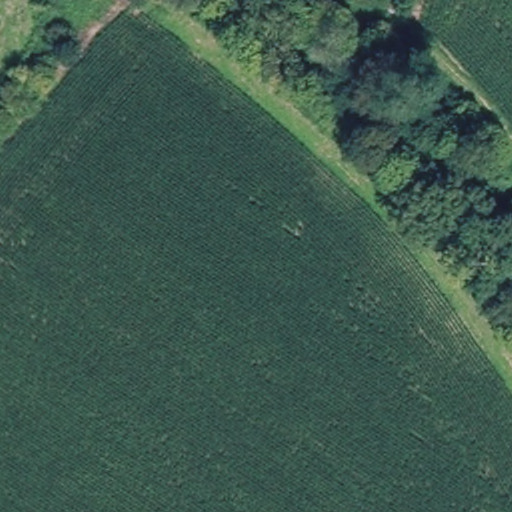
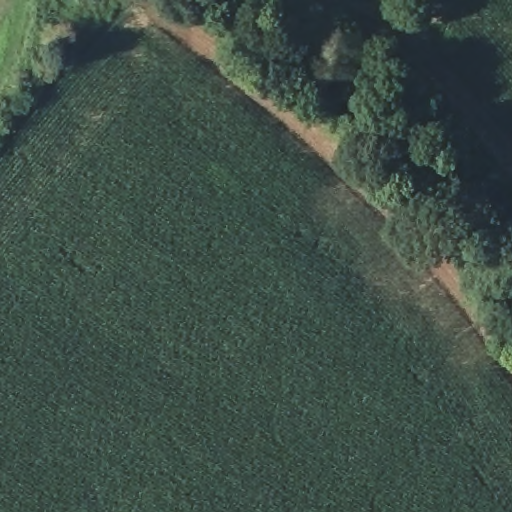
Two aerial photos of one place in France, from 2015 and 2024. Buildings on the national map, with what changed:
[]

